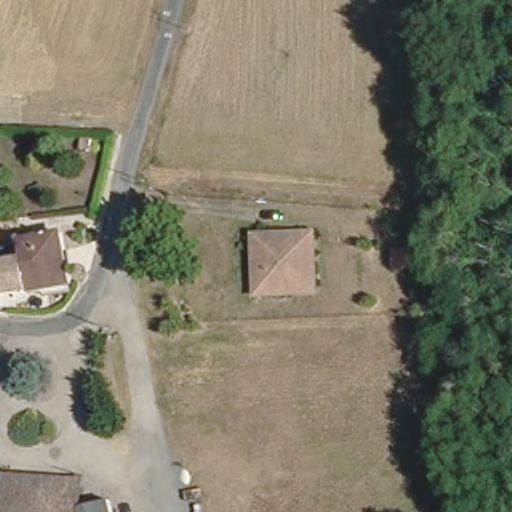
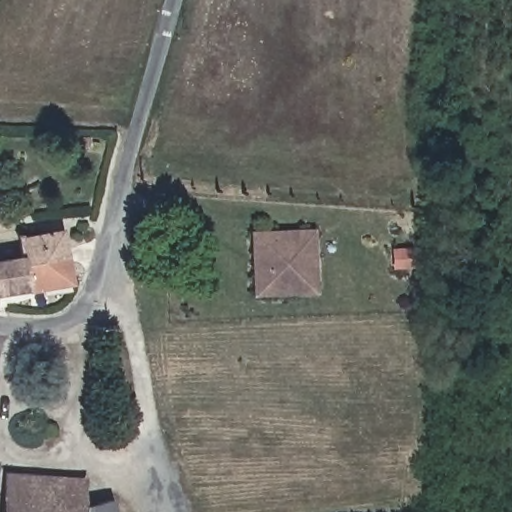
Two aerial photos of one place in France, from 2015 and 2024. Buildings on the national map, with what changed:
unchanged [(316,226),(320,295),(251,298),(246,229),(316,226)]
unchanged [(18,238),(59,231),(68,280),(46,285),(22,289),(0,292),(0,261),(21,257),(18,238)]
unchanged [(0,512),(0,490),(1,473),(31,474),(35,499),(36,512),(0,512)]
unchanged [(35,499),(31,474),(43,475),(64,475),(83,476),(83,501),(72,501),(70,501),(35,499)]
unchanged [(75,512),(72,501),(83,501),(106,495),(110,512),(75,512)]
unchanged [(72,512),(36,512),(35,499),(70,501),(72,512)]

